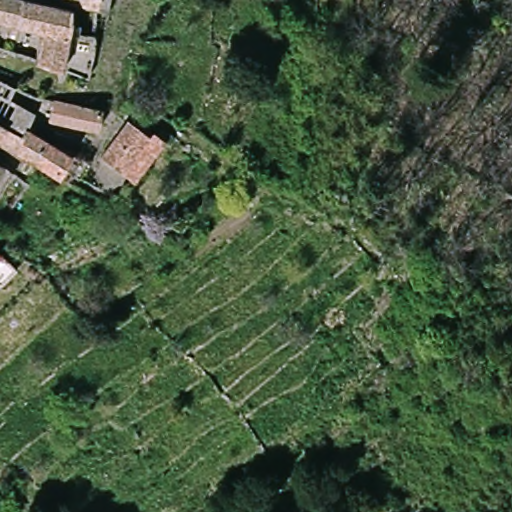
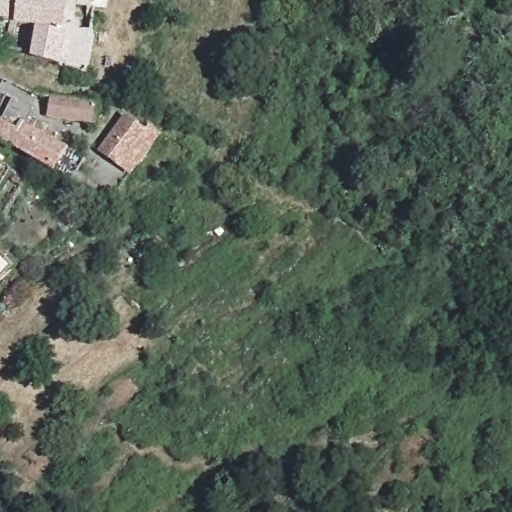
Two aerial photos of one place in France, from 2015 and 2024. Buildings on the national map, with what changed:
unchanged [(40,20),(0,14),(0,0),(49,0),(73,3),(70,17),(82,19),(79,39),(66,36),(63,55),(36,48),(40,20)]
unchanged [(98,0),(98,1),(93,0),(98,0)]
unchanged [(59,172),(0,136),(0,78),(13,85),(8,95),(37,112),(31,125),(70,147),(59,172)]
unchanged [(100,128),(50,116),(53,95),(103,102),(100,128)]
unchanged [(125,113),(149,130),(152,124),(167,130),(134,173),(100,149),(125,113)]
unchanged [(11,168),(0,185),(0,161),(11,168)]
unchanged [(3,256),(0,260),(0,254),(3,256)]

